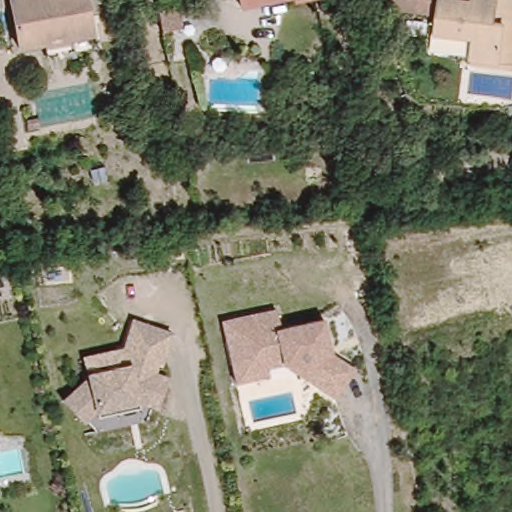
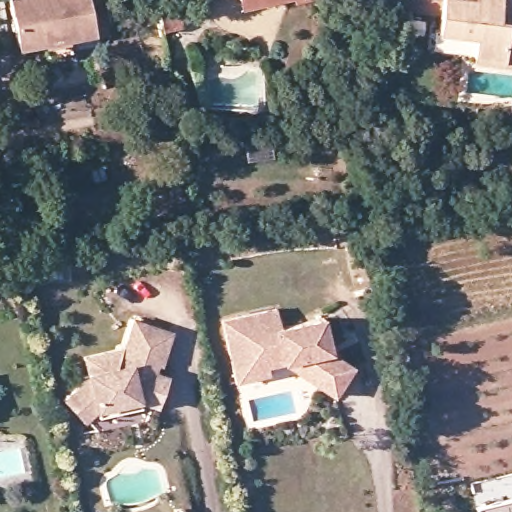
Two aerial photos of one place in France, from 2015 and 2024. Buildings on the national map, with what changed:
unchanged [(90,41),(14,51),(8,0),(83,0),(90,41)]
unchanged [(199,3),(199,0),(214,0),(199,3)]
unchanged [(219,8),(217,0),(259,0),(219,8)]
unchanged [(270,4),(269,0),(290,0),(270,4)]
unchanged [(433,10),(376,0),(435,0),(433,10)]
unchanged [(468,54),(471,35),(429,27),(433,10),(435,0),(512,0),(512,61),(468,54)]
unchanged [(281,305),(286,321),(332,315),(339,351),(360,367),(339,395),(288,363),(238,371),(226,316),(281,305)]
unchanged [(87,374),(88,367),(118,362),(132,319),(174,328),(155,382),(146,382),(148,403),(102,410),(90,421),(63,394),(87,374)]
new [(512,501),(512,512),(479,512),(478,509),(512,501)]

